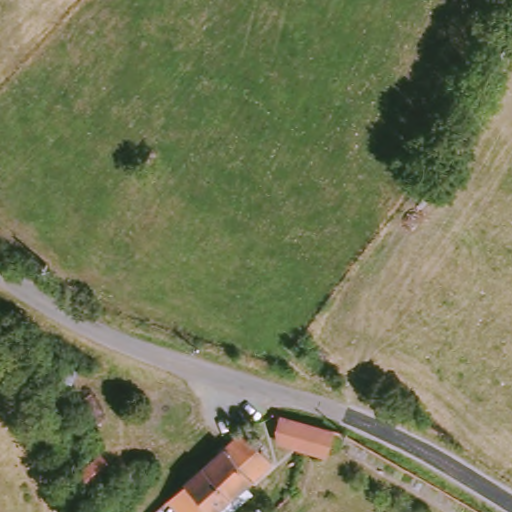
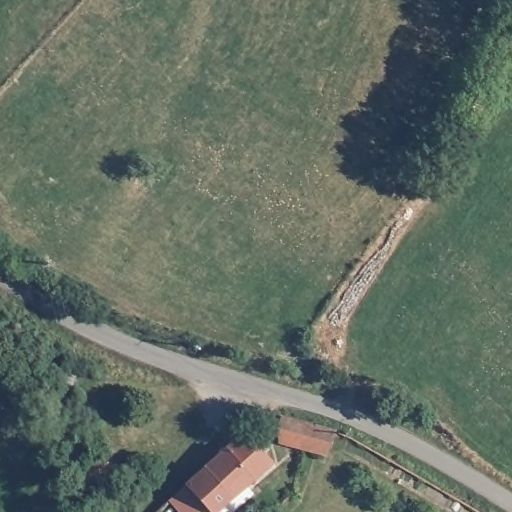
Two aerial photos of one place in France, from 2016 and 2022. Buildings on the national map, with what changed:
unchanged [(277,443),(282,413),(337,427),(335,428),(327,456),(277,443)]
unchanged [(187,484),(185,482),(204,465),(205,466),(245,429),(277,462),(256,482),(255,480),(247,486),(255,494),(235,512),(211,512),(205,504),(197,512),(178,512),(169,501),(187,484)]
unchanged [(113,468),(94,485),(80,470),(100,453),(113,468)]

